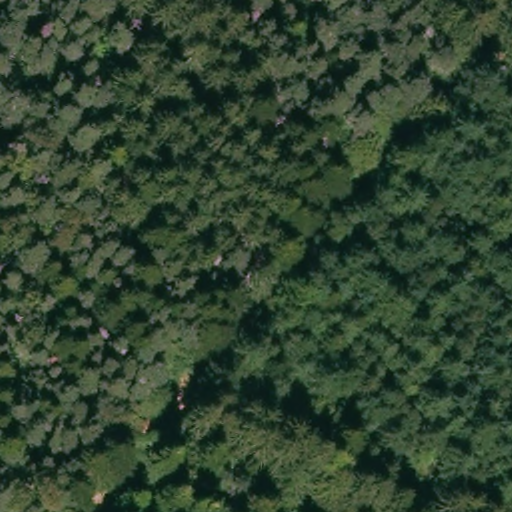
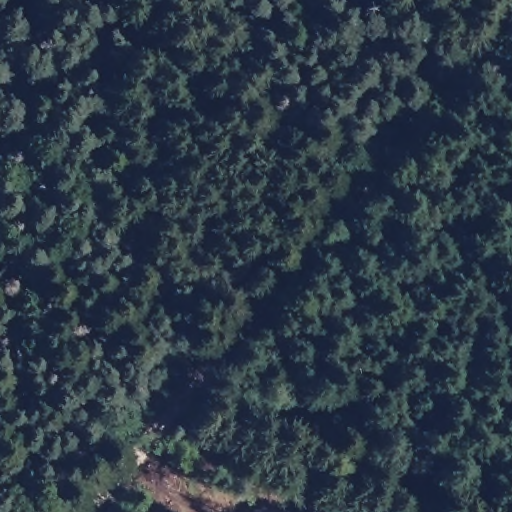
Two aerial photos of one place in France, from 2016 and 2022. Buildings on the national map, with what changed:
[]

